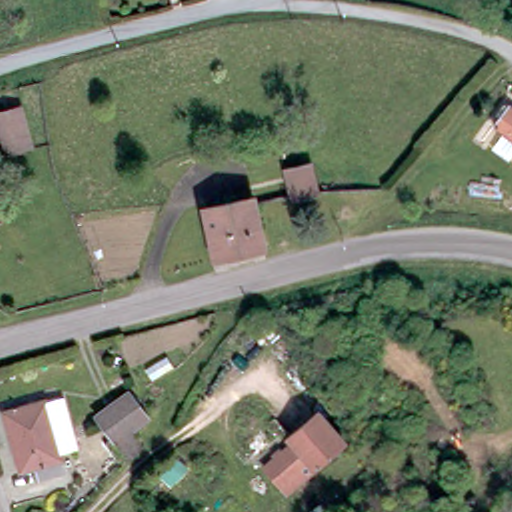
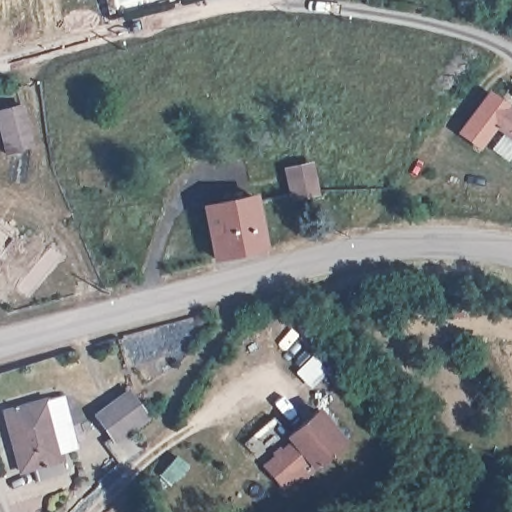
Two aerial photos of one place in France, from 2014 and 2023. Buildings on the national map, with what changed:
new [(489,122),(496,128),(482,149),(457,132),(488,89),(507,104),(489,122)]
unchanged [(2,152),(0,142),(0,108),(21,104),(31,147),(2,152)]
unchanged [(507,104),(512,109),(512,142),(489,122),(507,104)]
unchanged [(284,171),(311,165),(316,190),(289,195),(284,171)]
unchanged [(269,249),(216,262),(206,210),(256,199),(269,249)]
unchanged [(128,395),(146,417),(114,442),(96,419),(128,395)]
unchanged [(30,480),(26,465),(9,470),(0,437),(0,412),(41,402),(60,472),(30,480)]
unchanged [(281,449),(284,452),(295,443),(291,438),(321,412),(347,442),(289,492),(266,467),(277,458),(274,455),(281,449)]
unchanged [(178,460),(188,468),(176,481),(167,472),(178,460)]

